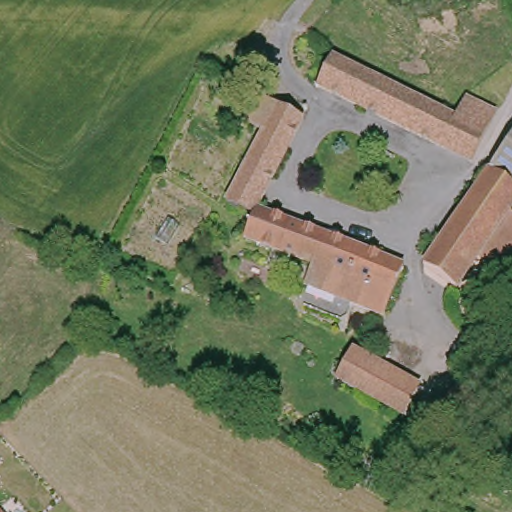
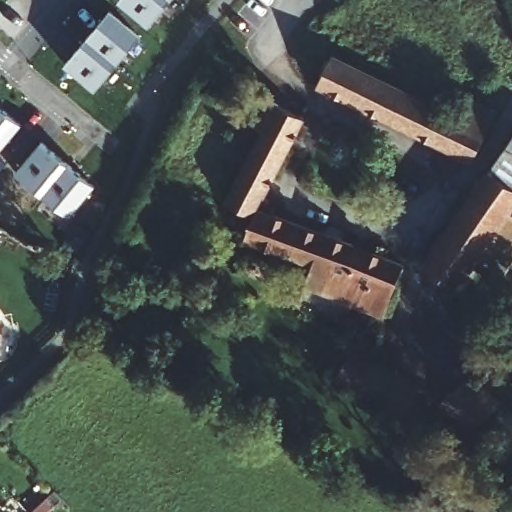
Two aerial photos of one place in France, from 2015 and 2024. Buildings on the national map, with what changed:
new [(147,24),(119,0),(168,0),(147,24)]
new [(107,11),(138,36),(116,62),(85,36),(107,11)]
new [(85,36),(116,62),(94,88),(64,62),(85,36)]
unchanged [(332,57),(402,90),(455,116),(466,96),(492,109),(497,112),(472,162),(319,86),(332,57)]
unchanged [(258,212),(232,198),(270,127),(254,118),(267,92),(309,114),(261,203),(409,261),(387,313),(385,313),(380,310),(382,304),(311,277),(318,259),(250,233),(258,212)]
new [(19,123),(0,146),(0,108),(19,123)]
unchanged [(512,164),(497,152),(512,130),(512,164)]
new [(66,163),(41,193),(15,171),(40,141),(66,163)]
unchanged [(512,212),(512,246),(496,269),(474,254),(457,277),(452,284),(419,260),(485,164),(487,165),(497,152),(512,164),(512,196),(505,206),(512,212)]
new [(92,185),(67,215),(41,193),(66,163),(92,185)]
unchanged [(335,377),(351,348),(420,387),(405,415),(339,380),(335,377)]
demolished [(450,395),(472,375),(473,376),(499,402),(497,404),(477,423),(450,395)]
unchanged [(0,512),(0,511),(1,512),(0,512)]

